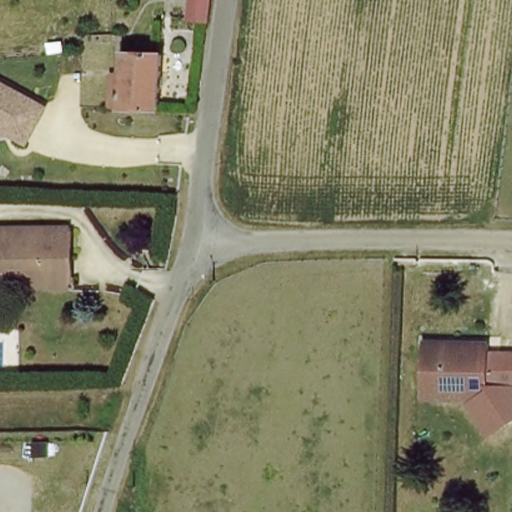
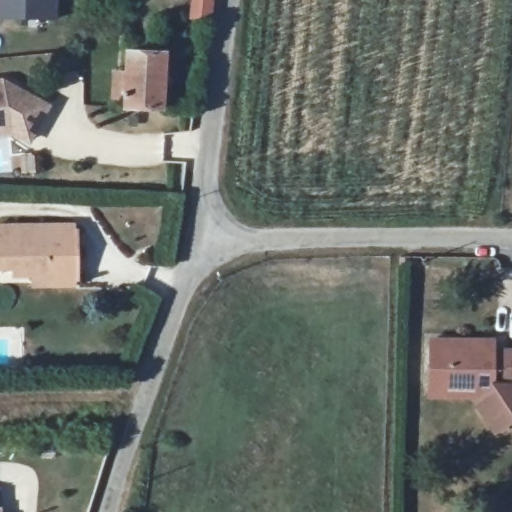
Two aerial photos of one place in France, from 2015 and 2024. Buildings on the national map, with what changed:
new [(53,23),(14,21),(0,21),(0,0),(54,0),(53,23)]
unchanged [(208,26),(191,25),(192,0),(211,0),(209,15),(208,26)]
unchanged [(129,107),(129,105),(117,104),(118,69),(130,69),(131,53),(166,53),(164,107),(129,107)]
unchanged [(5,80),(53,106),(30,146),(13,135),(0,136),(0,80),(5,80)]
unchanged [(34,291),(34,279),(10,281),(10,270),(0,270),(0,226),(79,223),(79,244),(78,289),(34,291)]
unchanged [(427,387),(427,346),(498,348),(498,356),(512,355),(512,388),(496,388),(495,401),(427,401),(427,387)]
new [(3,507),(3,512),(0,512),(0,507),(3,507)]

